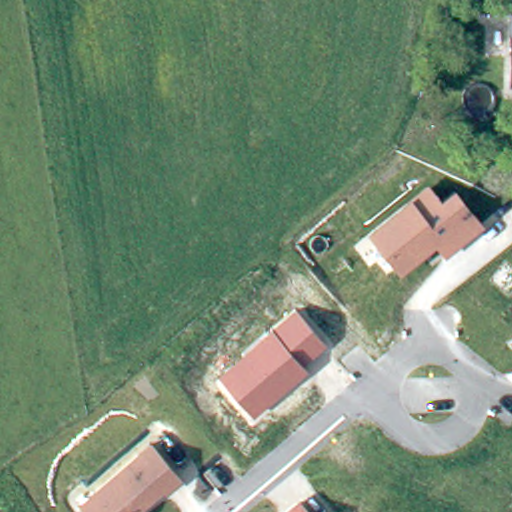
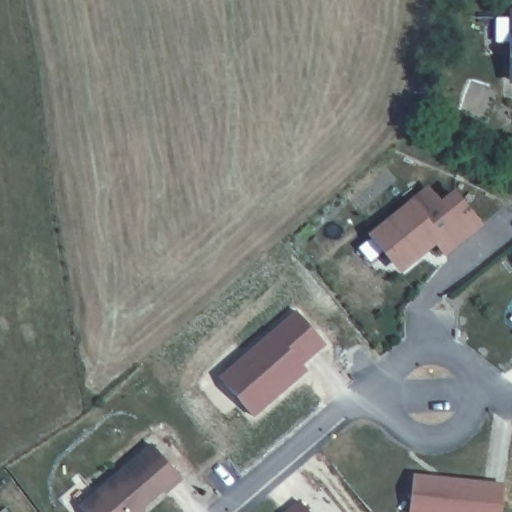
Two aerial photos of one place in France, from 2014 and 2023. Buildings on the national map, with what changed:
unchanged [(429,184),(441,199),(455,189),(485,224),(445,256),(435,244),(400,273),(368,234),(412,200),(429,184)]
unchanged [(326,346),(302,366),(307,371),(253,417),(220,377),(271,330),(296,309),(326,346)]
unchanged [(152,444),(182,479),(166,496),(162,493),(145,507),(145,512),(85,512),(80,507),(152,444)]
new [(413,474),(505,484),(502,512),(408,512),(413,474)]
unchanged [(300,500),(309,512),(284,512),(300,500)]

